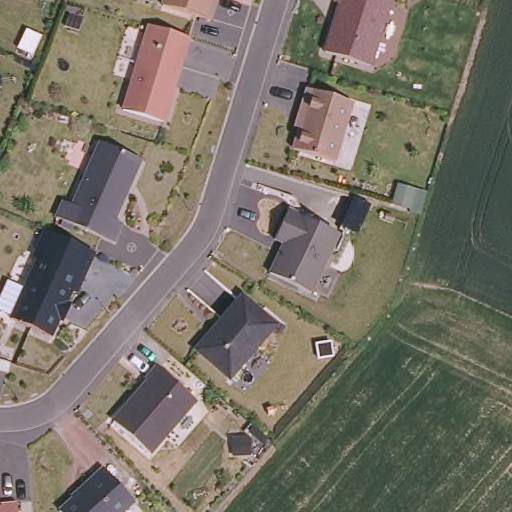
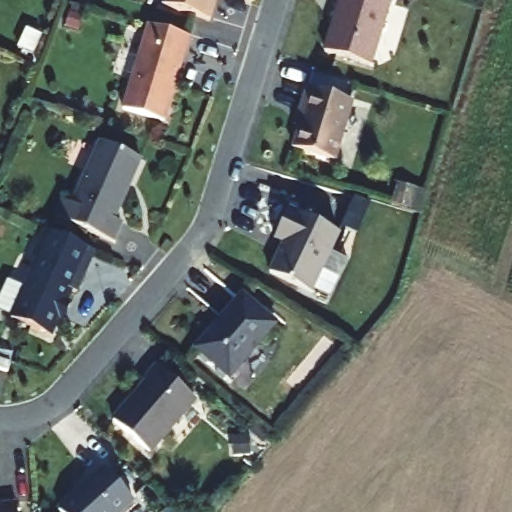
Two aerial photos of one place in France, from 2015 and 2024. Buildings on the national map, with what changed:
unchanged [(215,0),(210,20),(161,6),(163,0),(215,0)]
unchanged [(332,4),(334,0),(391,0),(373,65),(322,52),(335,5),(332,4)]
unchanged [(162,30),(188,37),(177,76),(174,75),(170,86),(173,87),(163,122),(122,110),(147,25),(162,30)]
unchanged [(297,127),(294,127),(304,87),(353,102),(337,161),(291,149),(297,127)]
unchanged [(59,226),(61,221),(55,217),(62,201),(71,205),(100,142),(140,160),(130,181),(128,180),(125,187),(127,189),(113,220),(120,223),(111,242),(73,226),(70,231),(59,226)]
unchanged [(279,244),(272,240),(287,207),(340,232),(311,293),(267,273),(279,244)]
unchanged [(44,231),(90,249),(53,338),(10,318),(44,231)]
unchanged [(240,292),(277,325),(230,381),(192,350),(240,292)]
unchanged [(6,372),(0,370),(0,360),(9,363),(6,372)]
unchanged [(147,382),(145,380),(156,366),(195,399),(148,452),(112,422),(147,382)]
unchanged [(92,481),(90,478),(102,467),(133,501),(121,512),(60,512),(58,511),(92,481)]
unchanged [(0,504),(16,503),(17,512),(0,512),(0,507),(0,504)]

